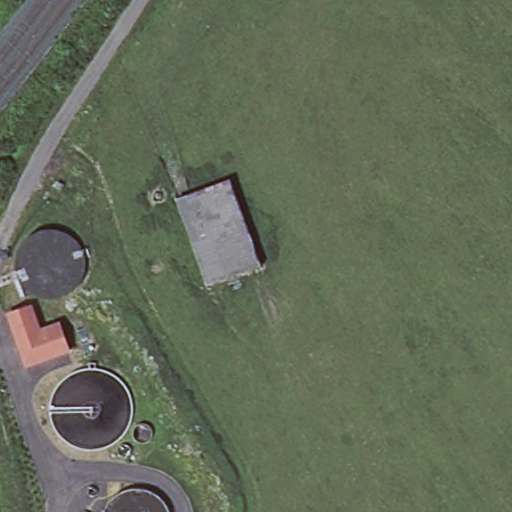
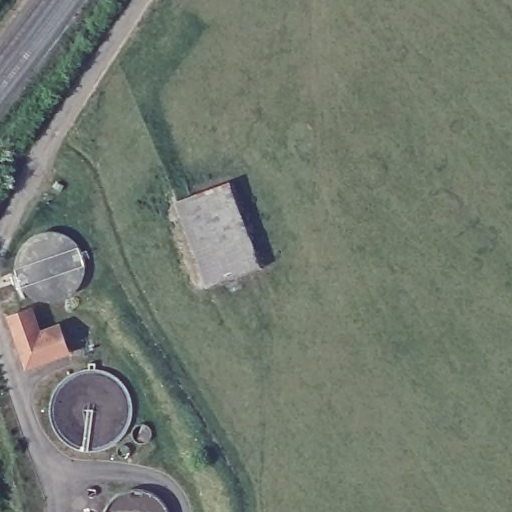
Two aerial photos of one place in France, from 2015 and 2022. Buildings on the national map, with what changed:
unchanged [(225,179),(257,266),(203,285),(172,199),(225,179)]
unchanged [(55,187),(58,181),(64,184),(60,190),(55,187)]
unchanged [(27,366),(9,315),(9,314),(11,313),(30,307),(40,331),(59,324),(69,351),(27,366)]

